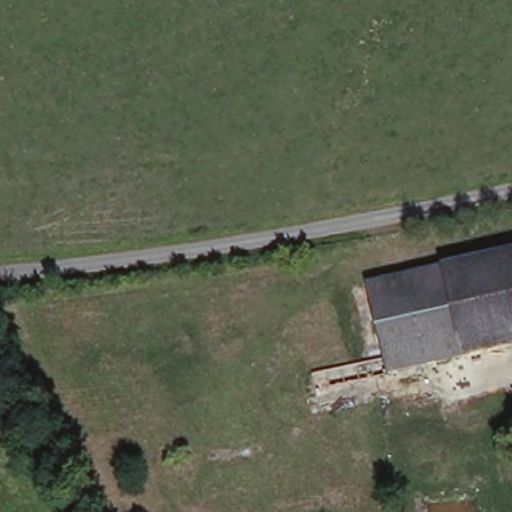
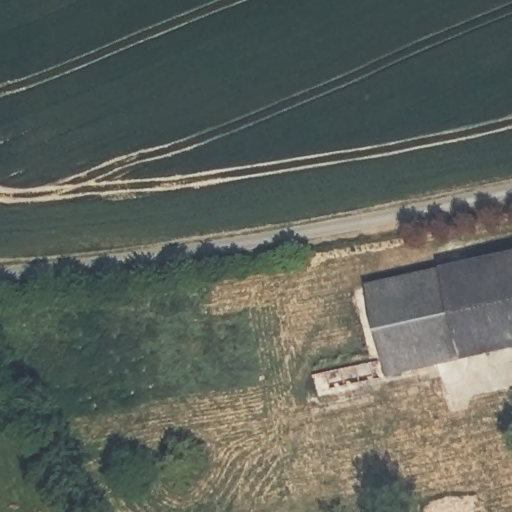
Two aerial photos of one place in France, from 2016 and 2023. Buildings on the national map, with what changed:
unchanged [(512,252),(512,345),(462,356),(442,267),(512,252)]
unchanged [(462,356),(390,373),(388,370),(384,371),(385,376),(316,391),(312,375),(387,358),(369,283),(442,267),(462,356)]

